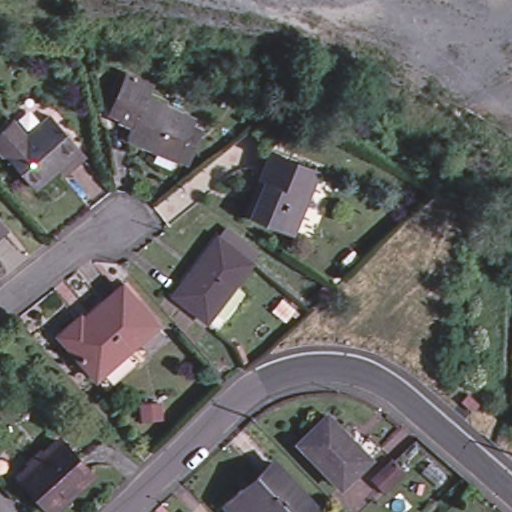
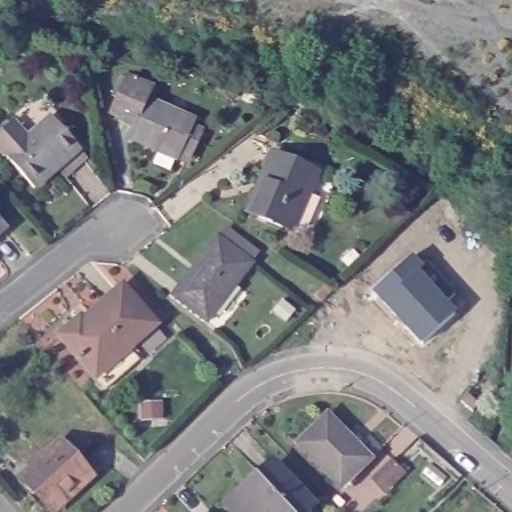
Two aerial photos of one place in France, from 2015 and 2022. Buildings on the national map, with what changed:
unchanged [(136,135),(142,123),(128,117),(130,113),(122,110),(137,76),(158,85),(153,97),(204,120),(187,157),(136,135)]
unchanged [(58,171),(52,165),(29,186),(1,155),(0,154),(0,131),(9,122),(21,136),(46,114),(74,145),(59,159),(65,166),(58,171)]
unchanged [(251,217),(263,187),(258,185),(271,155),(316,175),(291,234),(251,217)]
unchanged [(173,293),(217,235),(252,261),(207,320),(173,293)]
new [(406,255),(418,268),(422,264),(448,290),(438,300),(451,314),(420,345),(403,327),(406,324),(394,312),(391,315),(368,291),(406,255)]
unchanged [(54,327),(77,308),(79,311),(118,276),(153,317),(126,341),(134,350),(101,380),(54,327)]
new [(465,393),(477,405),(470,411),(458,400),(465,393)]
unchanged [(291,445),(319,415),(350,446),(361,436),(373,447),(362,458),(340,481),(334,486),(295,448),(291,445)]
unchanged [(25,478),(61,445),(92,477),(55,511),(25,478)]
unchanged [(221,505),(238,488),(243,493),(273,465),(315,510),(313,512),(227,512),(221,505)]

